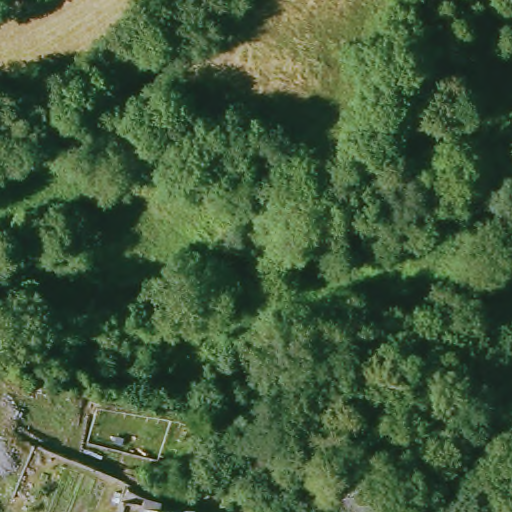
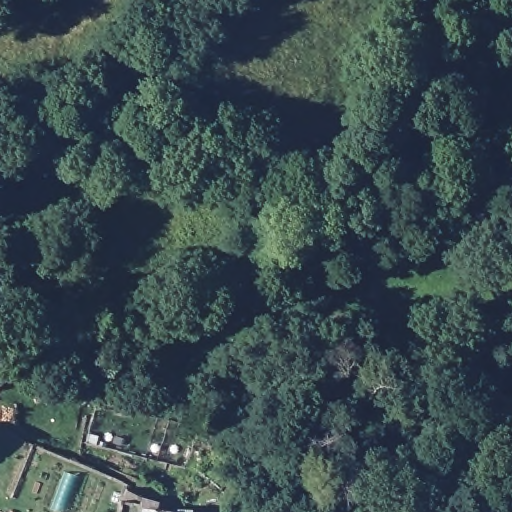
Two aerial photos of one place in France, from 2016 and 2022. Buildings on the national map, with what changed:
unchanged [(154,508),(154,512),(136,512),(137,499),(154,508)]

